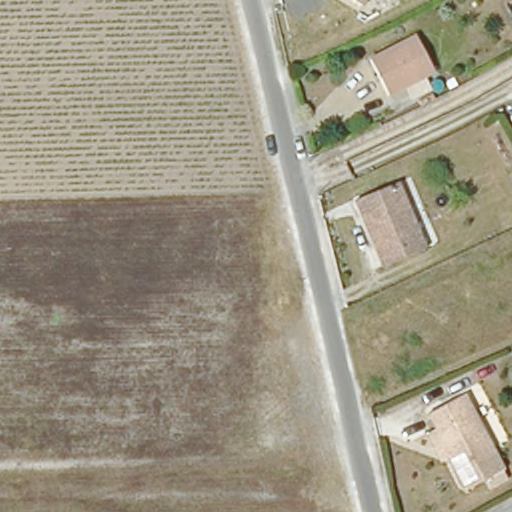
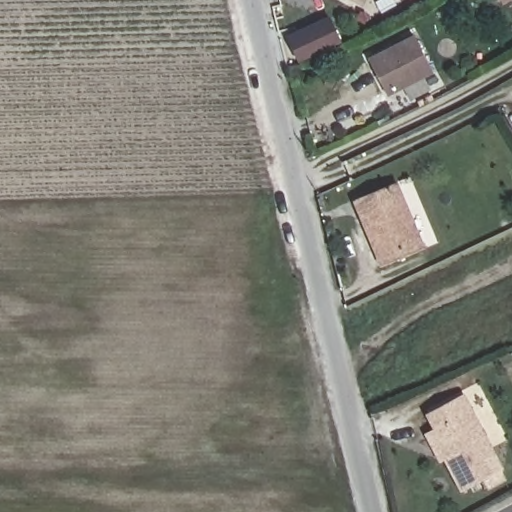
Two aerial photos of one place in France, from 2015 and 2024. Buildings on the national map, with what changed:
unchanged [(361,4),(354,0),(364,0),(361,4)]
unchanged [(503,0),(511,0),(505,3),(503,0)]
new [(299,64),(287,36),(330,16),(342,43),(299,64)]
unchanged [(410,100),(403,88),(385,97),(367,62),(413,40),(431,74),(418,81),(425,93),(410,100)]
unchanged [(383,271),(361,212),(356,214),(352,200),(392,183),(420,256),(383,271)]
unchanged [(427,440),(438,434),(430,418),(463,401),(502,474),(463,494),(446,462),(440,465),(427,440)]

